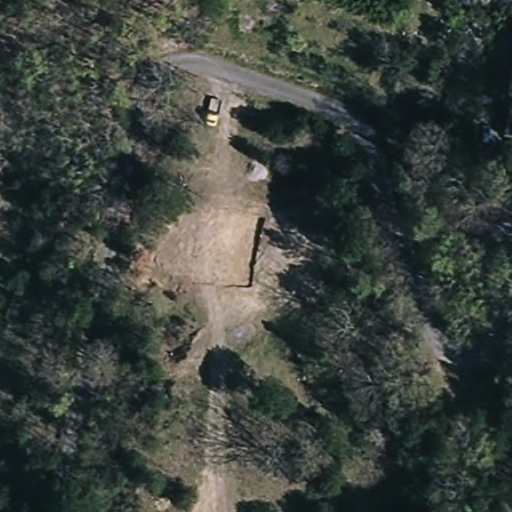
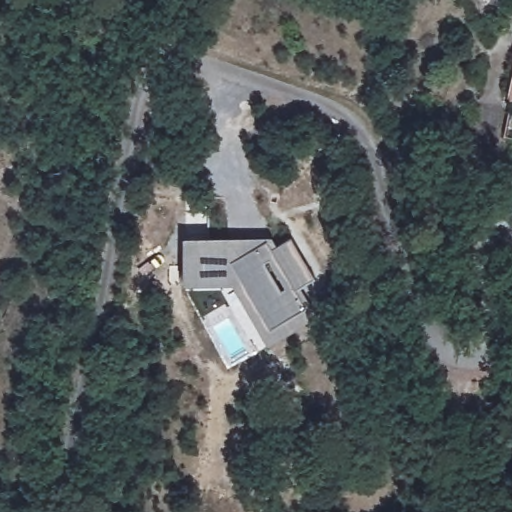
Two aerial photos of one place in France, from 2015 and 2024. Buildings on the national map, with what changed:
unchanged [(512,95),(512,97),(511,97),(512,95)]
new [(206,249),(206,237),(231,237),(266,238),(271,247),(290,236),(301,253),(305,261),(315,277),(301,286),(296,288),(307,306),(271,328),(243,281),(231,281),(185,280),(185,249),(206,249)]
new [(243,281),(271,328),(307,306),(296,288),(301,286),(318,315),(269,344),(231,281),(243,281)]

